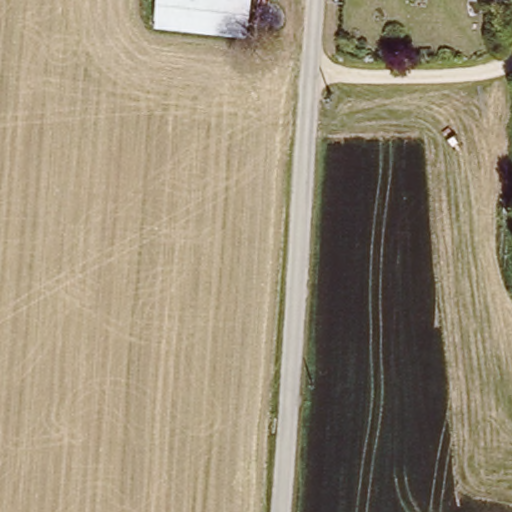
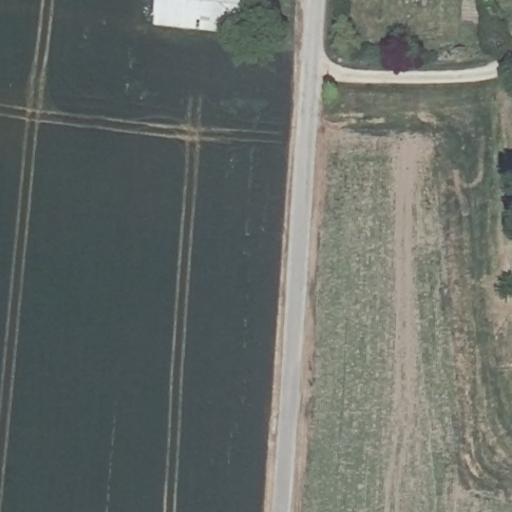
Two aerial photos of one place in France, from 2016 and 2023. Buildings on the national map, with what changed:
unchanged [(154,29),(156,0),(255,0),(253,35),(154,29)]

